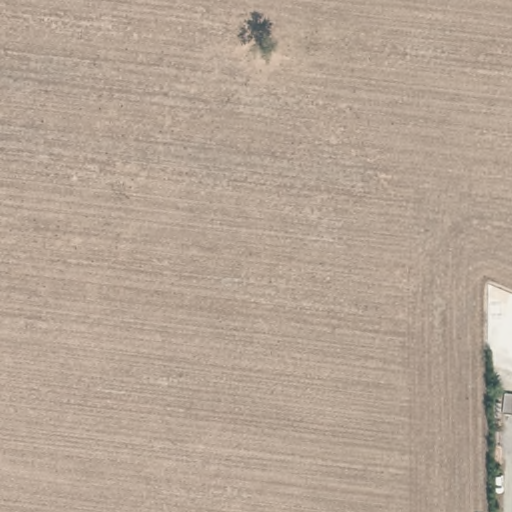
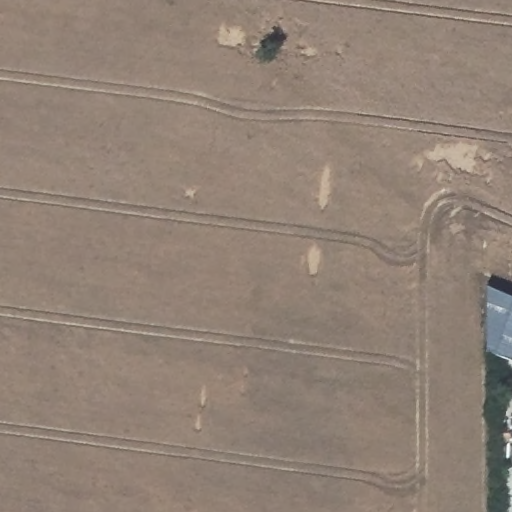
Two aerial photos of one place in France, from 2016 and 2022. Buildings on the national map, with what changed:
new [(488,347),(487,283),(512,293),(512,357),(488,347)]

